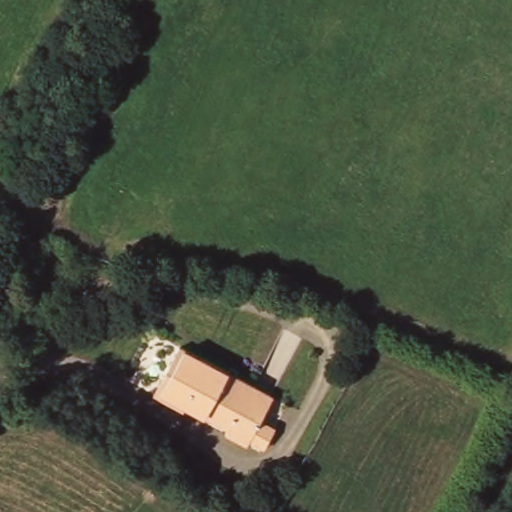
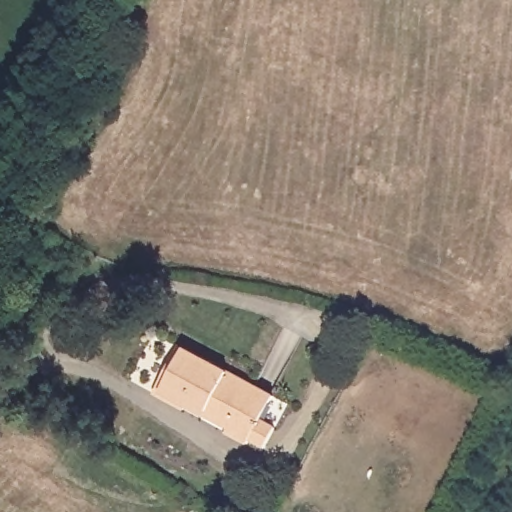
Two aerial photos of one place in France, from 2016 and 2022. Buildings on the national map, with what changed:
unchanged [(184,344),(277,395),(265,421),(280,428),(267,450),(251,440),(248,445),(230,434),(232,428),(192,406),(189,411),(158,393),(184,344)]

